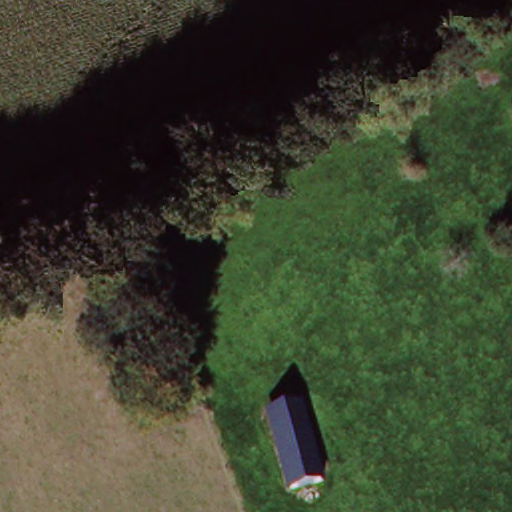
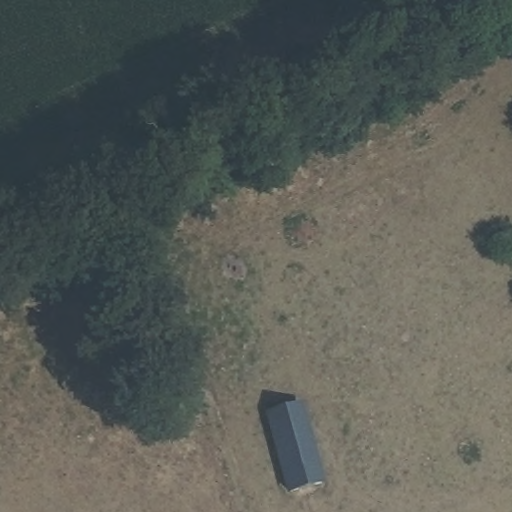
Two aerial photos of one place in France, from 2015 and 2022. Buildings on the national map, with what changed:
unchanged [(271,407),(300,398),(323,487),(293,494),(271,407)]

